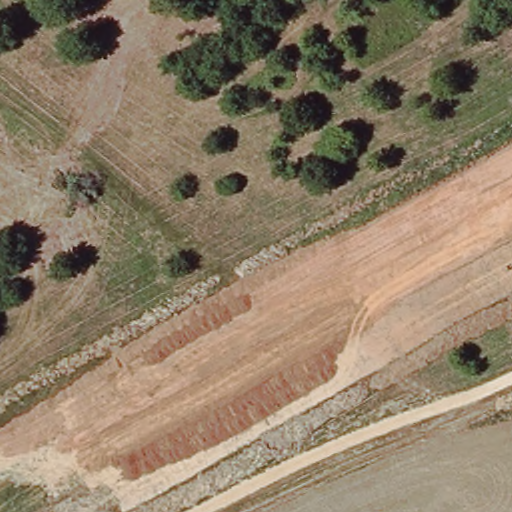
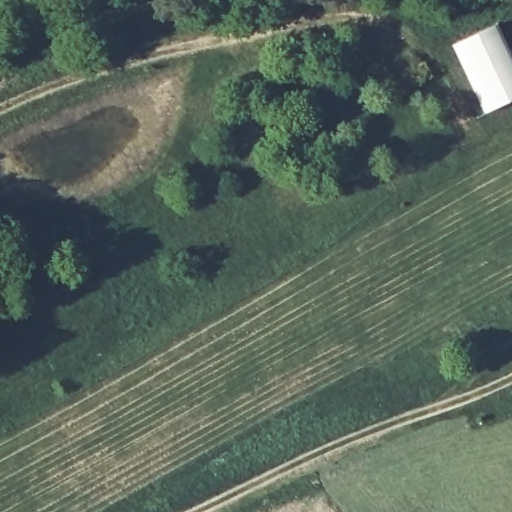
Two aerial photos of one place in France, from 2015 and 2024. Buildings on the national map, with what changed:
new [(496,24),(512,57),(512,100),(487,113),(453,44),(496,24)]

